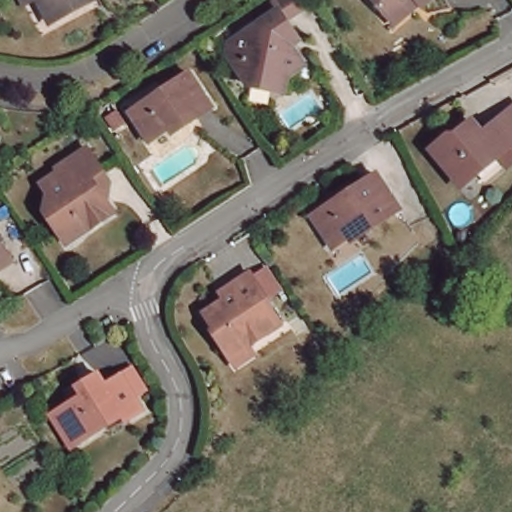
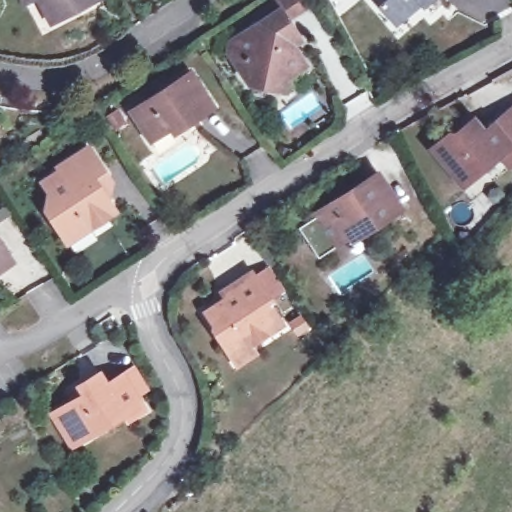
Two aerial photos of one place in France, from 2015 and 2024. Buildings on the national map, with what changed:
unchanged [(45,12),(38,0),(67,0),(45,12)]
unchanged [(390,22),(372,0),(433,0),(422,9),(422,8),(397,29),(390,22)]
unchanged [(276,87),(247,82),(234,61),(226,50),(233,45),(229,39),(280,6),(299,35),(292,40),(307,62),(290,73),(285,89),(276,87)]
unchanged [(189,70),(212,105),(185,123),(181,117),(149,138),(130,109),(189,70)]
unchanged [(497,152),(460,183),(430,147),(445,134),(448,137),(470,119),(480,130),(505,111),(512,105),(512,159),(507,164),(497,152)]
unchanged [(66,242),(50,218),(60,211),(46,190),(63,179),(60,175),(91,154),(109,180),(115,190),(105,197),(120,219),(87,241),(72,251),(66,242)]
unchanged [(377,169),(403,207),(374,228),(368,221),(334,244),(312,212),(377,169)]
unchanged [(0,266),(0,245),(10,260),(0,266)]
unchanged [(224,348),(213,331),(215,329),(204,310),(225,296),(221,289),(227,285),(250,270),(264,261),(282,288),(269,297),(267,298),(282,321),(249,343),(256,353),(237,367),(224,348)]
unchanged [(50,417),(59,412),(72,404),(70,399),(79,394),(75,389),(97,377),(105,389),(121,379),(141,413),(125,423),(122,419),(79,445),(70,450),(50,417)]

